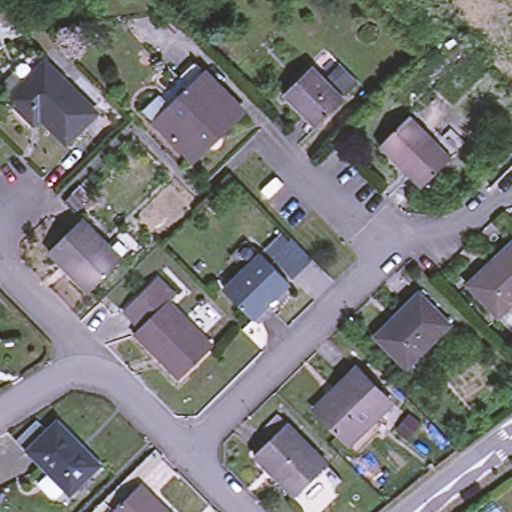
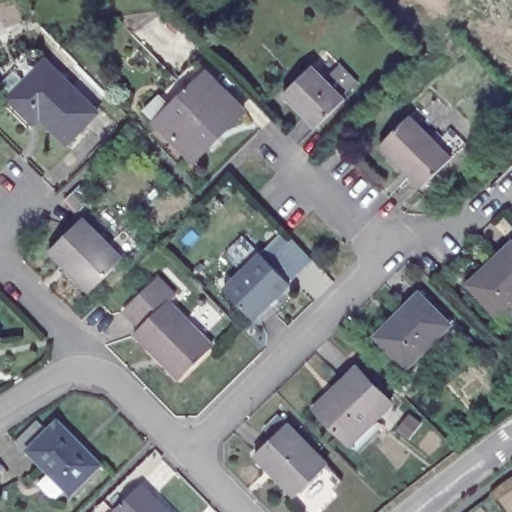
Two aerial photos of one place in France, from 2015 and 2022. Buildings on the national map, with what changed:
unchanged [(32,109),(13,89),(50,53),(101,105),(71,135),(44,108),(38,115),(32,109)]
unchanged [(152,118),(201,69),(211,80),(163,129),(152,118)]
unchanged [(317,132),(286,99),(314,71),(327,84),(342,69),(359,87),(344,101),(346,104),(317,132)]
unchanged [(211,80),(249,118),(199,167),(163,129),(211,80)]
unchanged [(379,144),(411,113),(438,141),(452,126),(467,141),(452,155),(420,186),(379,144)]
unchanged [(103,242),(118,225),(133,240),(118,256),(85,289),(45,249),(77,216),(103,242)]
unchanged [(512,255),(512,314),(506,320),(476,288),(512,255)]
unchanged [(261,256),(290,285),(254,321),(226,292),(261,256)]
unchanged [(161,282),(178,299),(172,305),(147,330),(131,313),(161,282)]
unchanged [(423,295),(455,326),(411,370),(379,339),(423,295)]
unchanged [(163,358),(141,336),(147,330),(172,305),(216,350),(189,377),(184,381),(163,358)]
unchanged [(357,451),(351,445),(319,412),(339,393),(337,390),(359,368),(394,403),(373,423),(379,430),(357,451)]
unchanged [(302,498),(261,455),(279,437),(271,429),(285,415),(294,424),(335,466),(302,498)]
unchanged [(41,479),(52,468),(30,446),(59,418),(103,459),(73,490),(68,484),(58,495),(41,479)]
unchanged [(127,507),(156,477),(190,512),(121,512),(127,507)]

